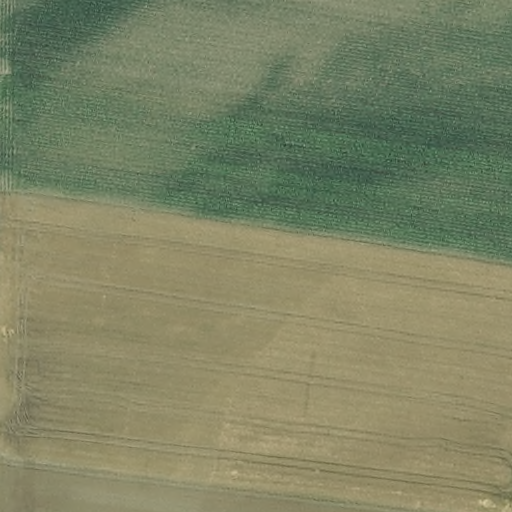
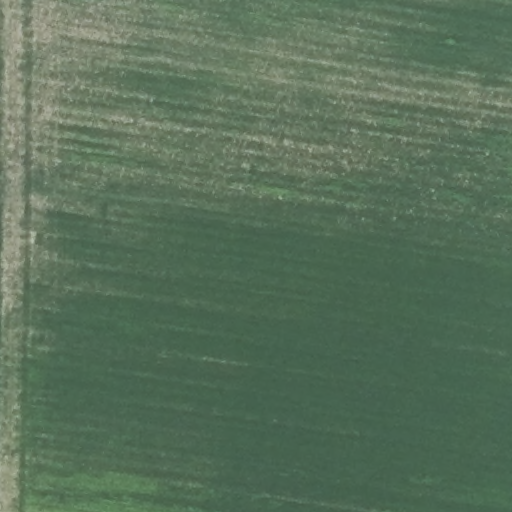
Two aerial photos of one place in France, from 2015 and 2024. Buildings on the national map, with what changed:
[]

